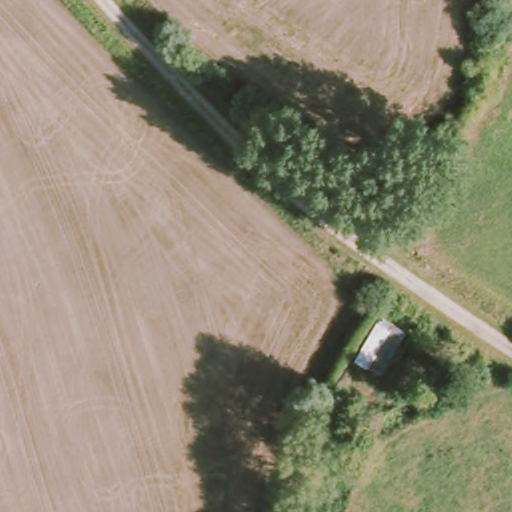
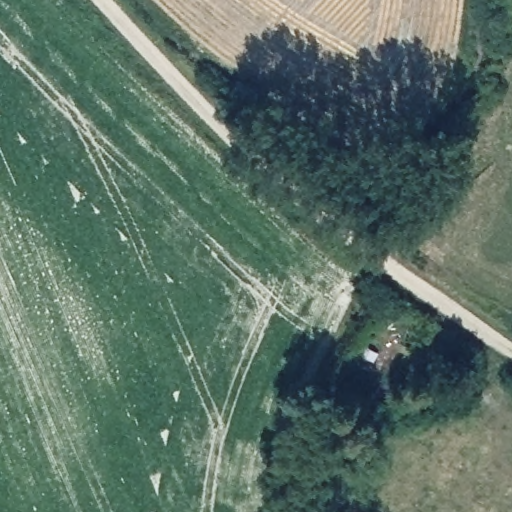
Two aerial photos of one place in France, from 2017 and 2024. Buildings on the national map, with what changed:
unchanged [(375,320),(405,337),(396,350),(401,353),(390,370),(382,368),(380,373),(351,360),(375,320)]

